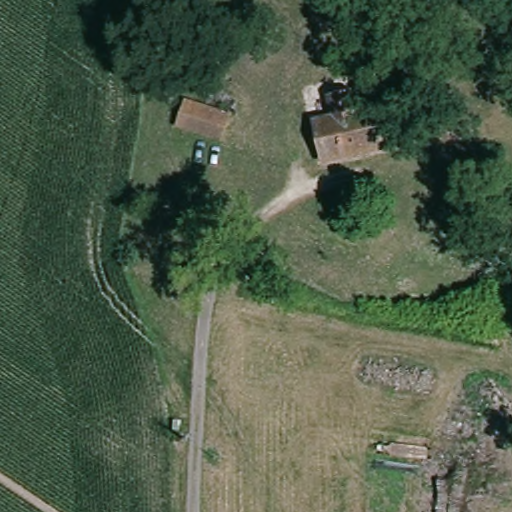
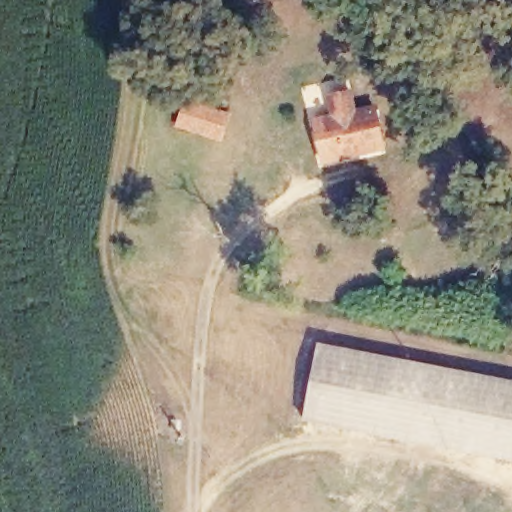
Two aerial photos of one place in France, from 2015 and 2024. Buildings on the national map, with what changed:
unchanged [(236,111),(226,135),(184,120),(192,95),(236,111)]
unchanged [(337,120),(337,100),(362,100),(362,119),(390,116),(390,155),(322,159),(321,122),(337,120)]
new [(512,464),(303,422),(318,343),(512,383),(512,464)]

